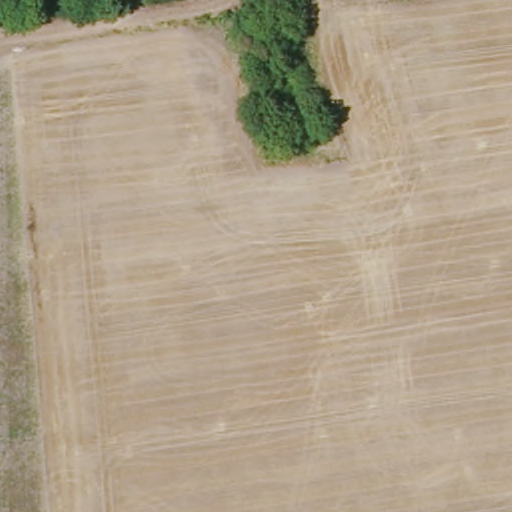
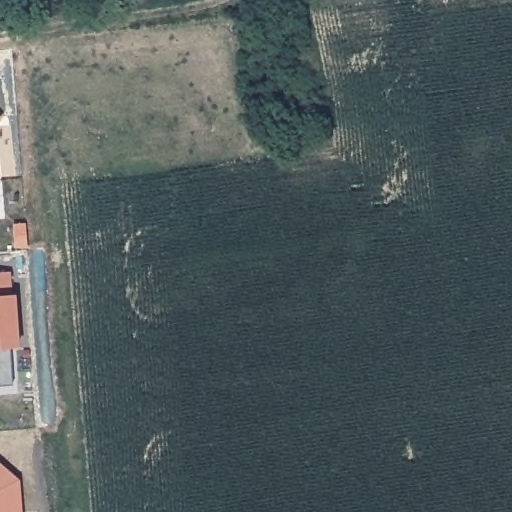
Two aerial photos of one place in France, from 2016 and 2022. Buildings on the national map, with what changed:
new [(0,386),(0,272),(8,271),(10,295),(14,295),(18,347),(11,347),(13,375),(14,385),(0,386)]
new [(18,481),(20,512),(0,512),(0,466),(18,481)]

